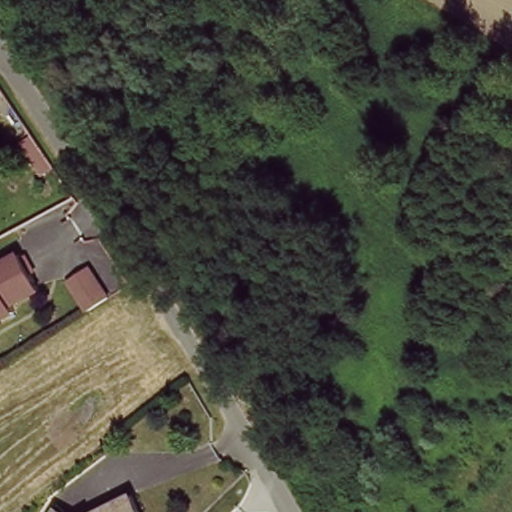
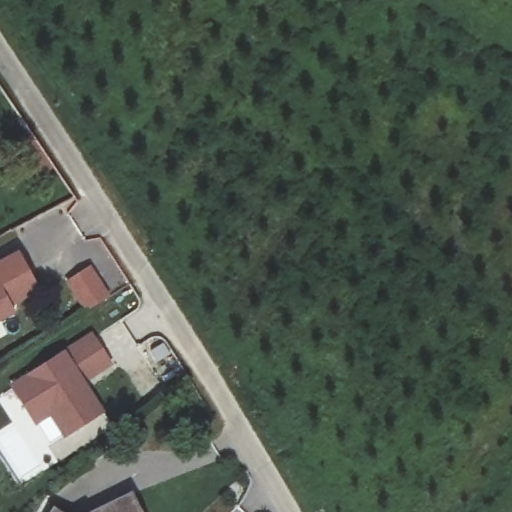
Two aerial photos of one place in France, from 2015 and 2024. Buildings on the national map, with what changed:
unchanged [(0,284),(0,274),(26,261),(44,298),(15,313),(18,320),(0,329),(0,286),(1,286),(0,284)]
unchanged [(89,315),(72,288),(96,273),(116,302),(89,315)]
new [(33,407),(20,384),(100,339),(116,368),(88,384),(105,415),(68,436),(55,413),(40,422),(33,407)]
unchanged [(140,501),(144,512),(107,512),(140,501)]
unchanged [(63,508),(68,512),(60,512),(63,508)]

